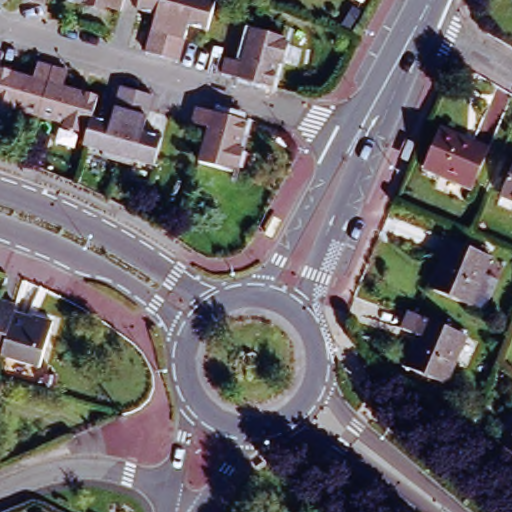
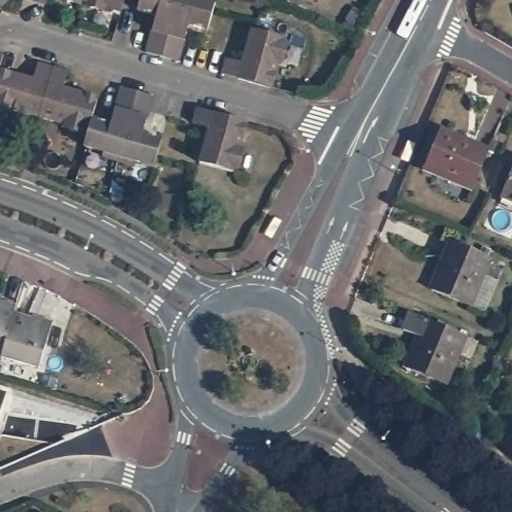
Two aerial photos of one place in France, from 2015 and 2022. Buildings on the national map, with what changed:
unchanged [(0,6),(0,0),(11,0),(2,8),(0,6)]
unchanged [(30,2),(30,0),(49,0),(46,7),(30,2)]
unchanged [(69,0),(88,0),(87,5),(69,0)]
unchanged [(87,5),(88,0),(127,0),(122,15),(87,5)]
unchanged [(138,19),(143,0),(182,0),(164,66),(145,62),(156,24),(138,19)]
unchanged [(182,0),(195,0),(197,0),(196,4),(215,10),(207,38),(189,33),(179,71),(164,66),(182,0)]
unchanged [(227,61),(244,66),(254,32),(284,41),(271,92),(223,78),(227,61)]
unchanged [(0,53),(4,54),(0,68),(0,53)]
unchanged [(14,109),(10,111),(0,109),(0,70),(35,79),(39,64),(54,68),(41,117),(14,109)]
unchanged [(69,72),(65,88),(99,97),(93,118),(91,130),(85,129),(82,132),(69,129),(68,124),(41,117),(54,68),(69,72)]
unchanged [(121,161),(105,157),(107,152),(86,146),(91,130),(93,118),(112,123),(122,87),(139,92),(121,161)]
unchanged [(145,133),(164,137),(157,166),(136,160),(135,166),(121,161),(139,92),(155,96),(145,133)]
unchanged [(245,123),(237,148),(241,152),(237,163),(232,163),(231,172),(196,162),(206,127),(190,123),(194,109),(245,123)]
unchanged [(469,190),(420,169),(435,131),(485,153),(469,190)]
unchanged [(499,198),(512,170),(512,204),(499,198)]
unchanged [(465,305),(426,287),(447,240),(485,257),(465,305)]
unchanged [(0,352),(0,303),(17,308),(16,313),(4,353),(0,352)]
unchanged [(4,353),(16,313),(36,319),(34,325),(54,332),(42,371),(2,358),(4,353)]
unchanged [(444,382),(406,365),(426,319),(464,336),(444,382)]
unchanged [(504,450),(512,440),(512,456),(504,450)]

